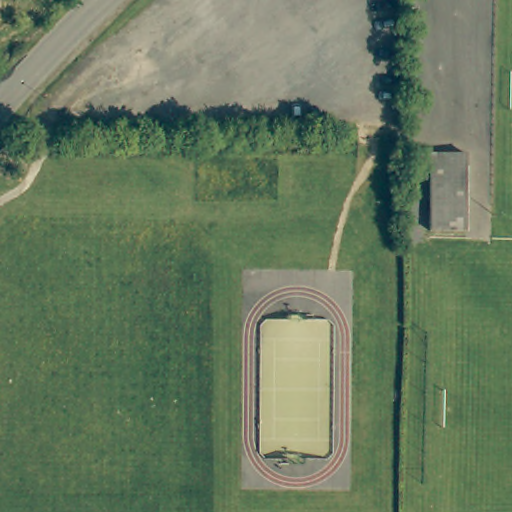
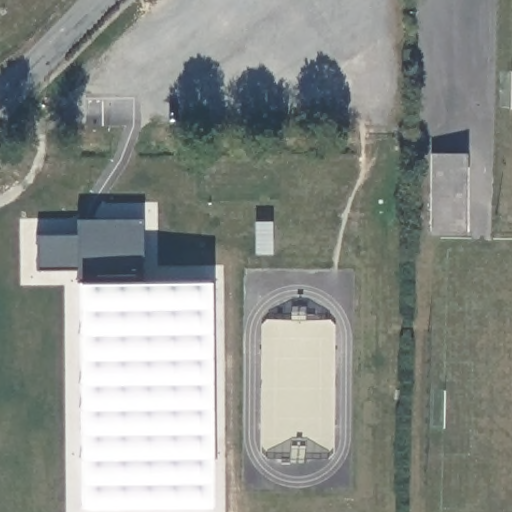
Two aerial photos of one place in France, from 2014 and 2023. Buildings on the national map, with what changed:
unchanged [(425,185),(423,185),(425,152),(463,154),(460,230),(423,228),(425,185)]
new [(197,512),(70,512),(70,285),(69,270),(36,266),(35,235),(77,233),(77,219),(140,220),(141,280),(218,280),(222,511),(197,512)]

